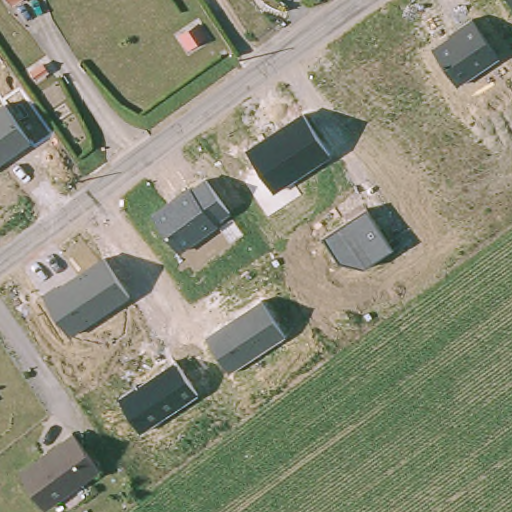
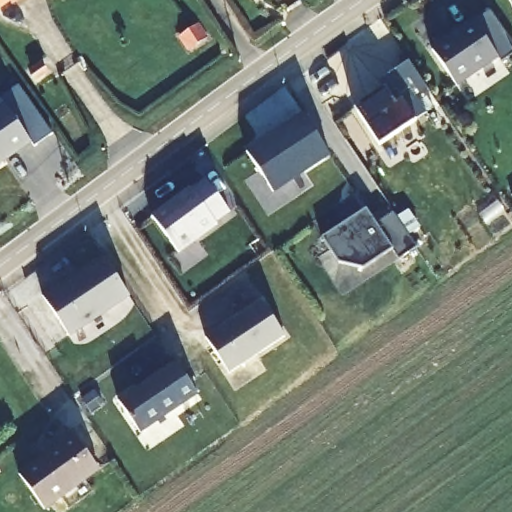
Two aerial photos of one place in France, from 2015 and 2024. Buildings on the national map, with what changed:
unchanged [(7,0),(17,0),(10,5),(7,0)]
unchanged [(507,0),(512,0),(512,8),(507,0)]
unchanged [(499,57),(457,85),(430,47),(472,19),(499,57)]
new [(380,86),(375,79),(393,66),(424,111),(376,142),(351,105),(380,86)]
unchanged [(31,141),(0,163),(0,104),(4,102),(31,141)]
unchanged [(331,155),(274,193),(244,149),(303,110),(331,155)]
unchanged [(231,214),(179,252),(151,214),(203,174),(231,214)]
unchanged [(393,248),(362,267),(339,261),(322,237),(367,207),(393,248)]
unchanged [(131,296),(70,334),(44,295),(103,255),(131,296)]
unchanged [(286,336),(228,375),(204,337),(261,299),(286,336)]
unchanged [(198,393),(141,431),(118,397),(175,358),(198,393)]
unchanged [(71,433),(97,467),(43,507),(18,472),(71,433)]

